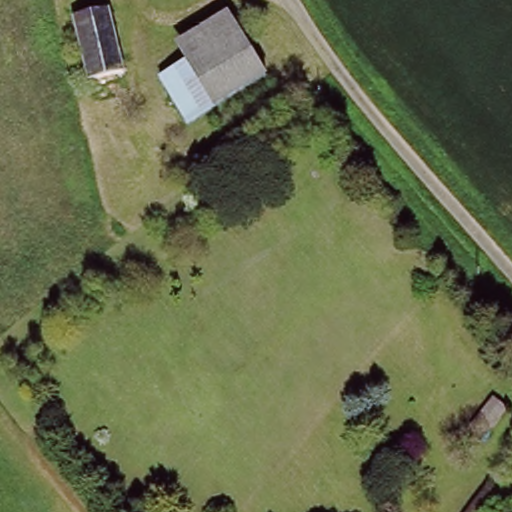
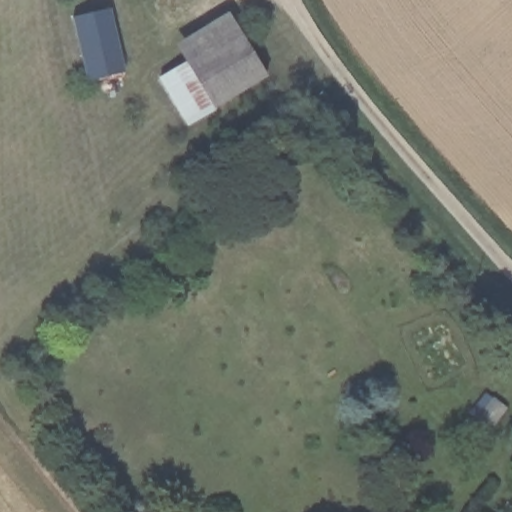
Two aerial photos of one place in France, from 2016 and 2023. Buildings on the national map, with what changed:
unchanged [(225,14),(269,72),(197,125),(167,82),(189,67),(177,50),(225,14)]
unchanged [(94,105),(89,82),(74,23),(109,15),(125,73),(130,95),(94,105)]
unchanged [(494,397),(502,405),(487,423),(477,436),(467,427),(478,416),(494,397)]

